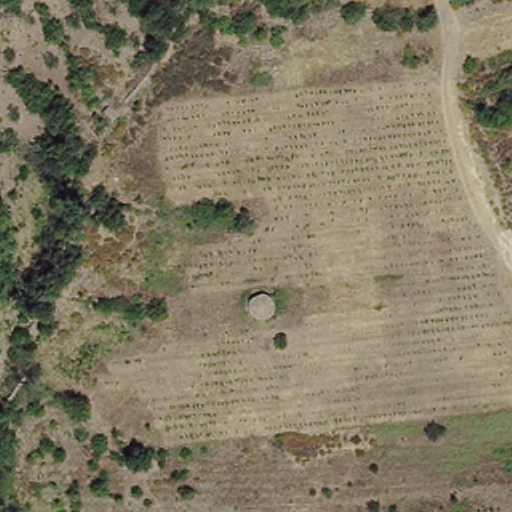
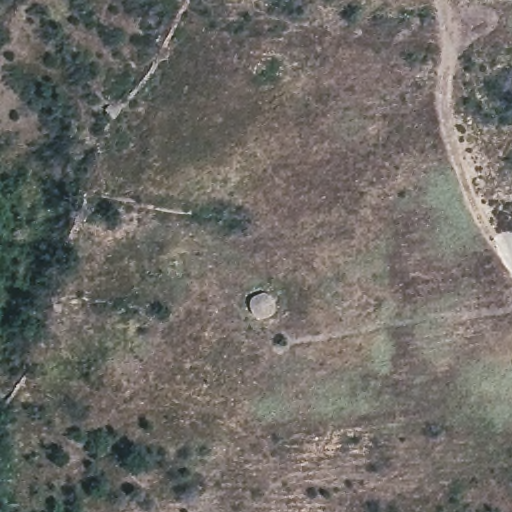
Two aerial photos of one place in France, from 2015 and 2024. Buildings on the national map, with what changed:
unchanged [(255,304),(260,300),(264,300),(271,300),(276,304),(278,312),(277,319),(270,323),(263,323),(257,319),(254,311),(255,304)]

